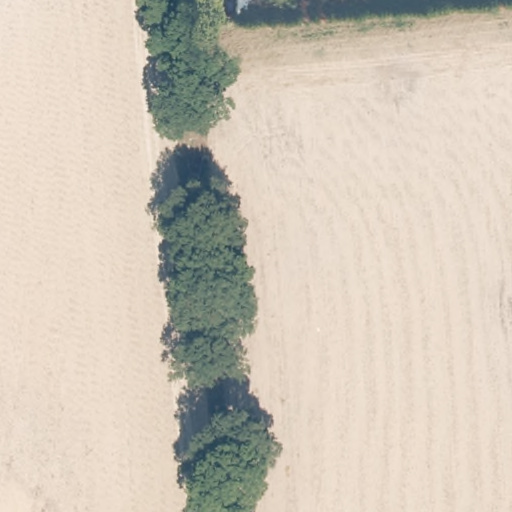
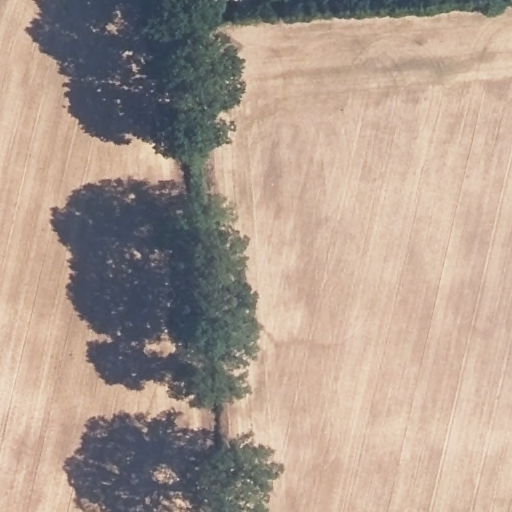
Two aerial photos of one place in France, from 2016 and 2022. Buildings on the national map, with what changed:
[]

